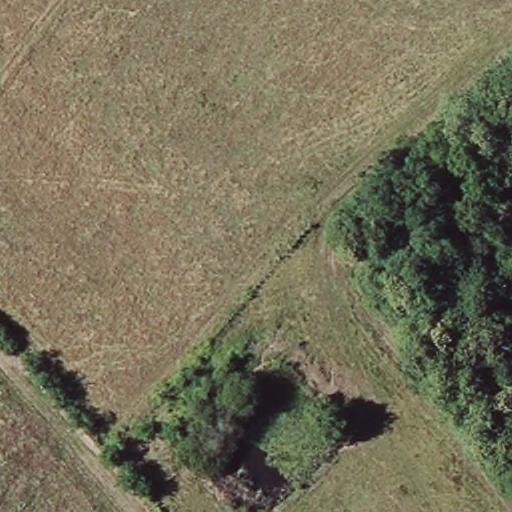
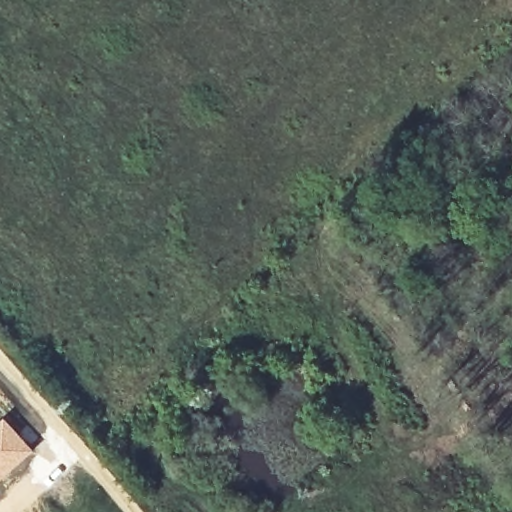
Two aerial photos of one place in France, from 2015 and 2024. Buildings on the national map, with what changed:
new [(34,449),(0,480),(0,418),(4,415),(34,449)]

